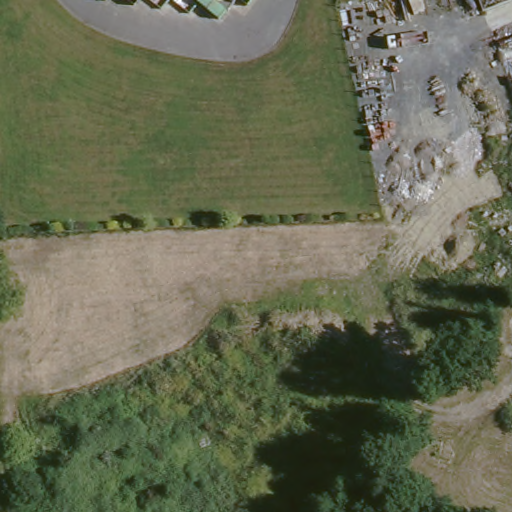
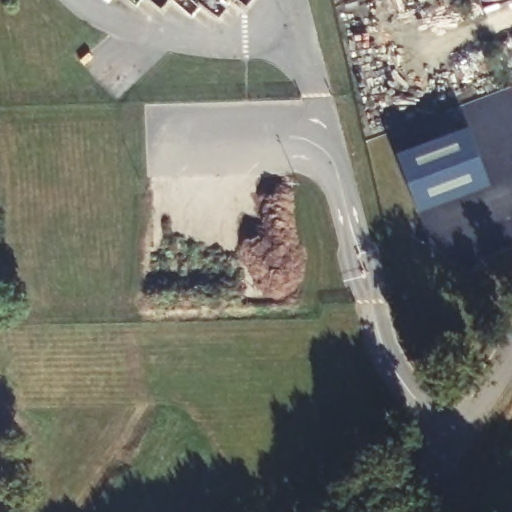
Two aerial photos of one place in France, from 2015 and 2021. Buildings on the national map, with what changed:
new [(468,130),(489,187),(418,212),(397,156),(468,130)]

